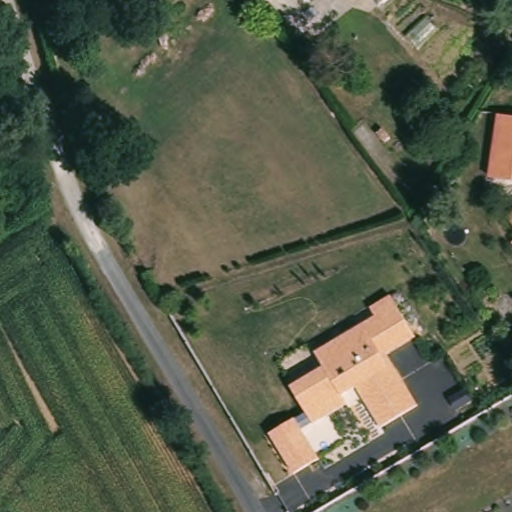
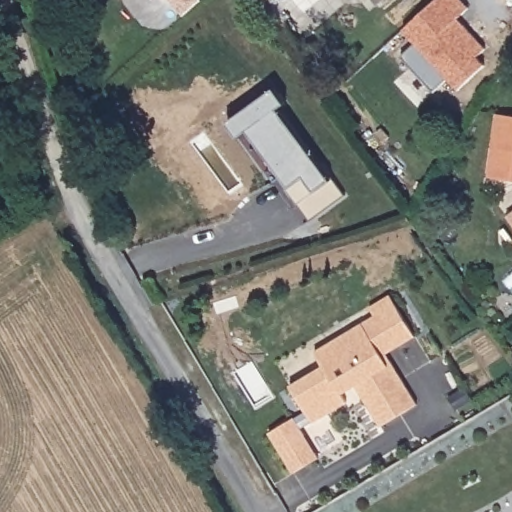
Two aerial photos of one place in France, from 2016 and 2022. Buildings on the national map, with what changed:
new [(166,1),(164,0),(168,0),(166,1)]
new [(187,21),(182,14),(172,0),(201,0),(202,1),(206,6),(187,21)]
unchanged [(266,6),(260,0),(271,0),(266,6)]
new [(468,8),(458,18),(487,49),(478,57),(486,65),(458,90),(449,79),(433,90),(402,54),(415,44),(401,28),(435,0),(461,0),(468,8)]
new [(286,102),(277,108),(330,179),(317,189),(298,202),(288,187),(248,131),(240,136),(231,122),(277,90),(286,102)]
unchanged [(487,180),(497,116),(512,119),(512,184),(487,180)]
unchanged [(505,223),(512,217),(512,233),(505,223)]
unchanged [(508,244),(512,241),(512,250),(508,244)]
unchanged [(386,426),(363,386),(348,395),(352,401),(319,421),(299,388),(346,359),(337,344),(383,316),(378,309),(399,296),(422,337),(391,356),(422,406),(386,426)]
unchanged [(455,406),(471,396),(479,409),(463,420),(455,406)]
unchanged [(294,416),(321,458),(292,476),(268,433),(294,416)]

